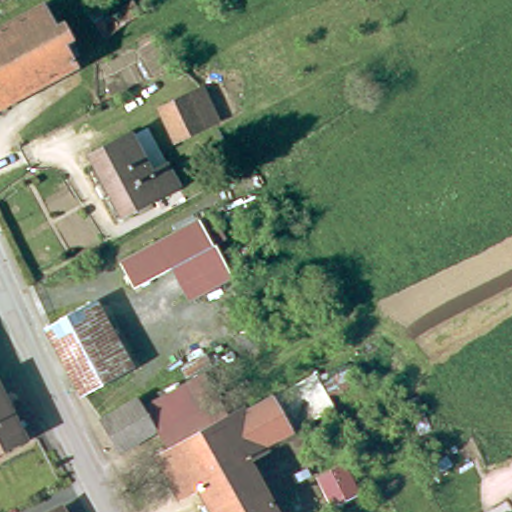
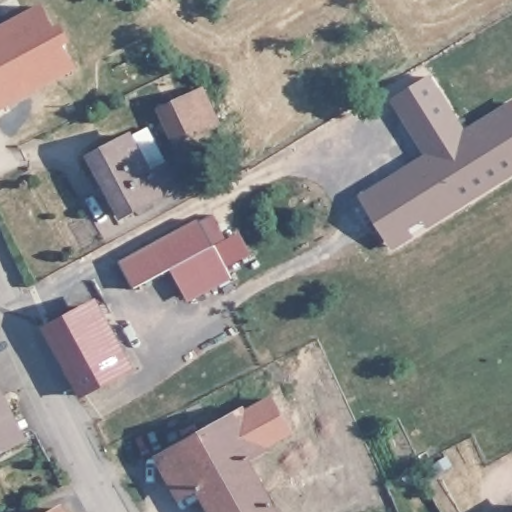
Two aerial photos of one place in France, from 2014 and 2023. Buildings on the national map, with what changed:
unchanged [(75,72),(0,111),(0,34),(42,11),(75,72)]
new [(512,180),(392,252),(357,191),(420,153),(389,102),(431,75),(465,131),(512,102),(512,180)]
unchanged [(161,114),(205,94),(218,125),(175,145),(161,114)]
unchanged [(115,217),(84,161),(126,138),(138,131),(157,166),(168,187),(115,217)]
unchanged [(113,273),(193,229),(203,248),(123,291),(113,273)]
unchanged [(48,332),(94,309),(106,332),(115,326),(137,367),(83,399),(48,332)]
unchanged [(146,410),(202,379),(226,422),(210,432),(171,454),(146,410)]
unchanged [(160,463),(159,461),(171,454),(210,432),(226,422),(240,415),(241,418),(262,406),(270,402),(270,406),(290,395),(302,416),(307,423),(288,434),(274,443),(261,450),(263,455),(246,464),(258,485),(262,491),(274,512),(212,512),(198,490),(182,500),(160,463)]
unchanged [(23,442),(1,453),(0,453),(0,397),(23,442)]
unchanged [(155,432),(121,453),(100,426),(136,403),(155,432)]
demolished [(365,486),(341,500),(328,479),(353,465),(365,486)]
unchanged [(65,511),(66,512),(62,512),(65,511)]

